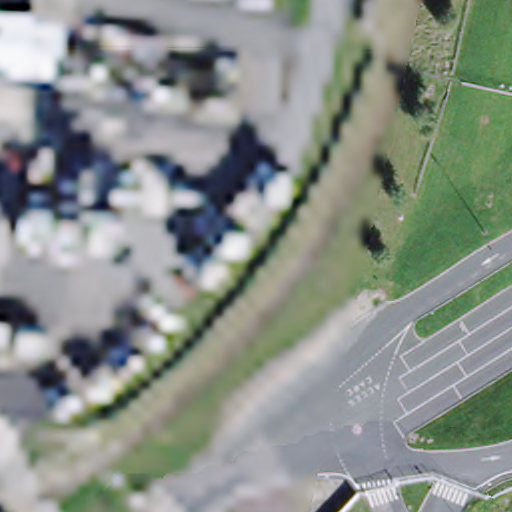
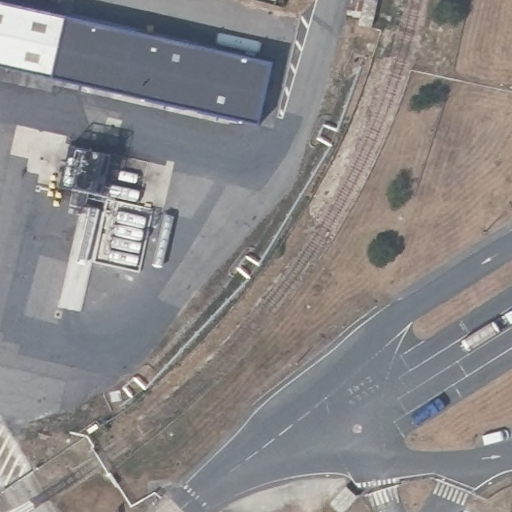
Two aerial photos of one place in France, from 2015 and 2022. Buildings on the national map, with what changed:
unchanged [(364,20),(368,0),(381,0),(375,24),(364,20)]
unchanged [(58,77),(0,65),(0,1),(71,17),(58,77)]
new [(71,17),(272,62),(258,124),(58,77),(71,17)]

